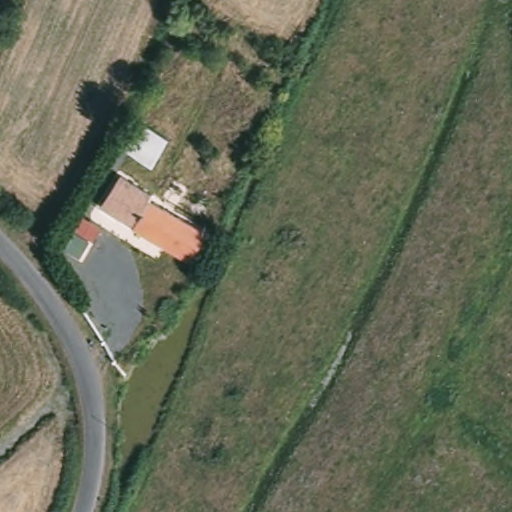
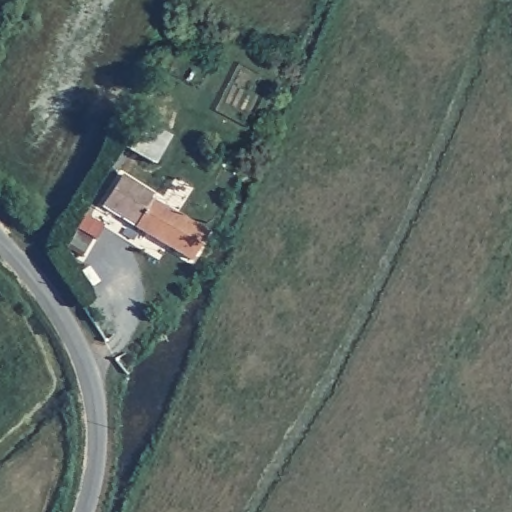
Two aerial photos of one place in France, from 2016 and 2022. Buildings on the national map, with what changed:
unchanged [(168,145),(156,175),(134,165),(149,134),(168,145)]
unchanged [(160,205),(157,210),(212,238),(200,265),(107,221),(122,187),(160,205)]

